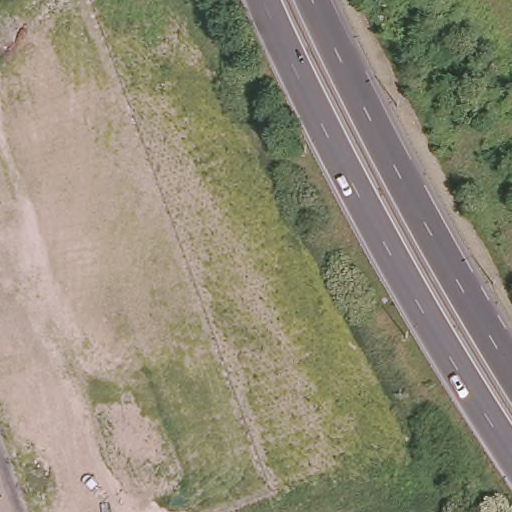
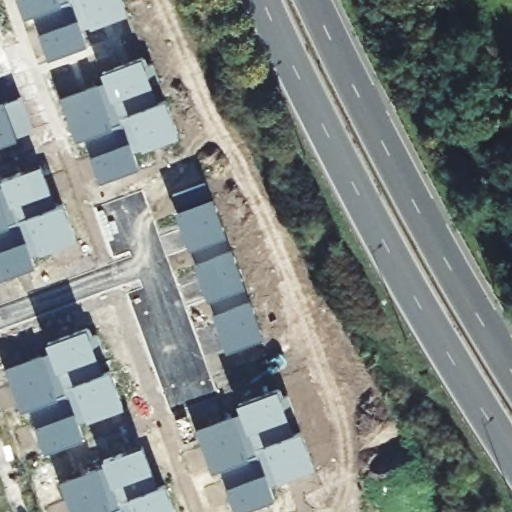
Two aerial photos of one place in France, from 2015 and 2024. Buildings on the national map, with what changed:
new [(84,32),(89,44),(48,59),(41,32),(35,15),(25,18),(19,0),(123,0),(129,14),(84,32)]
new [(159,100),(167,97),(179,135),(134,152),(139,167),(101,181),(86,137),(77,140),(62,95),(105,78),(101,70),(143,55),(159,100)]
new [(16,135),(18,137),(0,144),(0,101),(4,100),(23,95),(36,129),(16,135)]
new [(64,202),(77,237),(32,254),(35,265),(0,278),(0,185),(4,183),(2,177),(41,162),(56,205),(64,202)]
new [(213,197),(263,337),(225,351),(175,209),(180,208),(173,195),(206,183),(213,197)]
new [(103,372),(111,368),(124,407),(78,422),(84,437),(45,451),(31,406),(20,410),(5,367),(49,349),(46,341),(86,326),(103,372)]
new [(294,432),(301,430),(314,465),(269,482),(276,497),(236,512),(228,485),(221,468),(213,471),(195,428),(239,410),(236,402),(278,387),(294,432)]
new [(158,485),(166,482),(177,512),(72,512),(60,481),(104,463),(102,458),(143,443),(158,485)]

